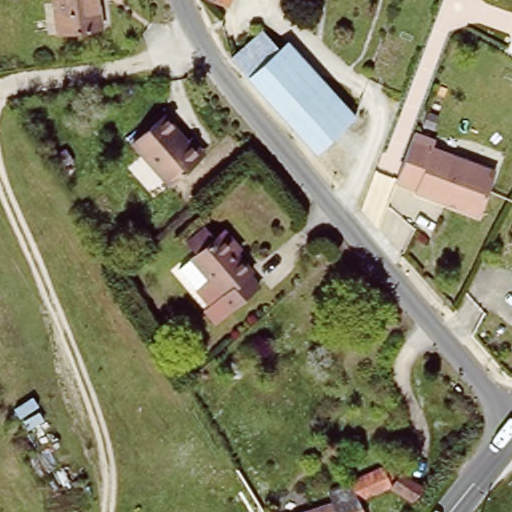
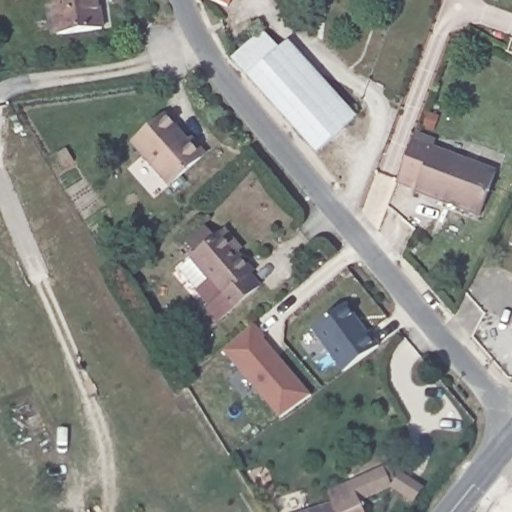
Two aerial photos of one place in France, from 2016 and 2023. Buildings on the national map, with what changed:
unchanged [(62,35),(57,0),(98,0),(102,29),(62,35)]
unchanged [(233,0),(229,10),(223,10),(220,27),(194,18),(200,0),(233,0)]
unchanged [(256,20),(282,49),(251,78),(226,49),(256,20)]
unchanged [(319,155),(251,78),(282,49),(351,125),(319,155)]
unchanged [(167,183),(134,144),(165,117),(197,158),(167,183)]
unchanged [(415,135),(436,144),(435,150),(498,174),(480,219),(415,195),(415,191),(397,184),(415,135)]
unchanged [(241,291),(247,300),(217,325),(209,315),(212,312),(184,274),(191,267),(182,258),(202,240),(211,250),(218,246),(231,262),(227,267),(245,287),(241,291)]
unchanged [(510,245),(512,241),(512,246),(510,245)]
new [(342,371),(311,329),(346,305),(366,333),(368,332),(378,346),(342,371)]
new [(279,418),(223,350),(252,325),(264,337),(261,338),(310,394),(279,418)]
unchanged [(434,479),(416,504),(397,490),(416,466),(434,479)]
unchanged [(332,491),(353,484),(387,472),(395,492),(362,504),(364,512),(302,512),(334,502),(332,491)]

